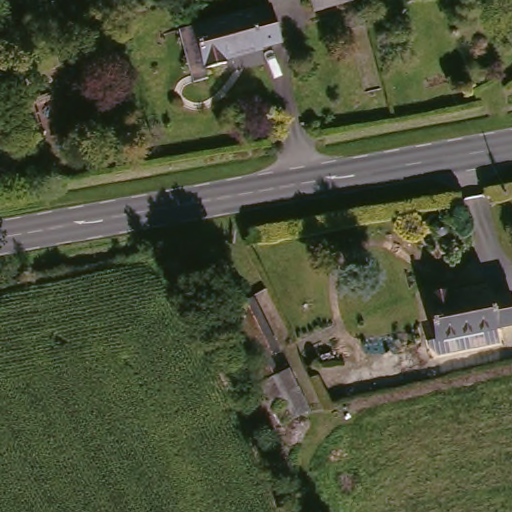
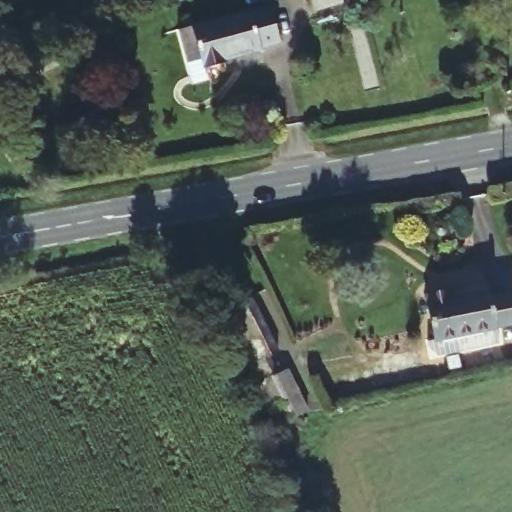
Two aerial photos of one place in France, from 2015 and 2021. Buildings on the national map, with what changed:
unchanged [(313,2),(312,0),(320,0),(313,2)]
unchanged [(216,59),(218,65),(194,72),(181,30),(259,7),(269,43),(216,59)]
unchanged [(434,341),(424,300),(452,294),(454,302),(493,293),(494,300),(503,297),(512,324),(434,341)]
unchanged [(271,353),(281,374),(289,371),(291,375),(306,412),(276,425),(226,311),(256,300),(279,349),(271,353)]

